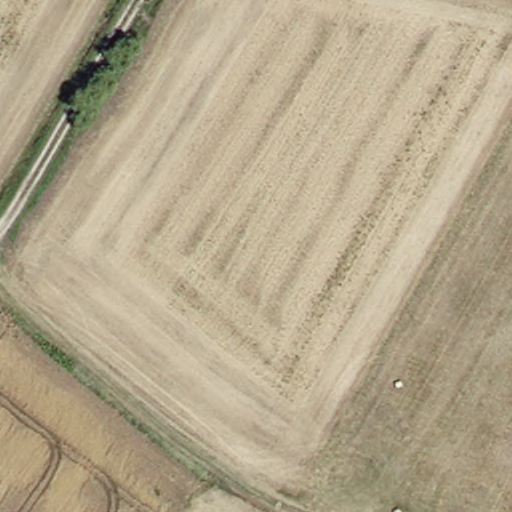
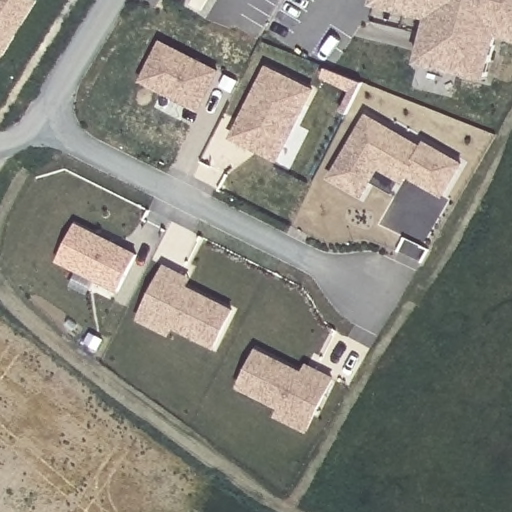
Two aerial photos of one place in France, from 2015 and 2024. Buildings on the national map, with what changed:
new [(0,55),(0,0),(36,0),(1,56),(0,55)]
new [(512,0),(512,37),(497,33),(485,78),(417,61),(428,18),(372,4),(373,0),(512,0)]
new [(199,110),(140,81),(163,45),(220,70),(199,110)]
new [(313,91),(278,159),(234,136),(268,68),(313,91)]
new [(330,177),(364,115),(421,145),(424,141),(465,162),(444,198),(408,178),(404,184),(399,181),(392,192),(374,181),(364,197),(330,177)]
new [(75,224),(137,255),(119,292),(56,261),(75,224)]
new [(187,280),(184,286),(234,311),(216,346),(171,323),(165,334),(138,320),(162,268),(187,280)]
new [(278,418),(283,407),(239,386),(258,351),(303,373),(307,368),(334,381),(308,433),(278,418)]

